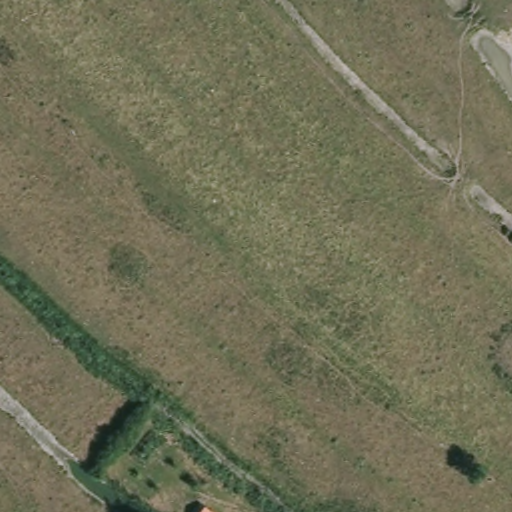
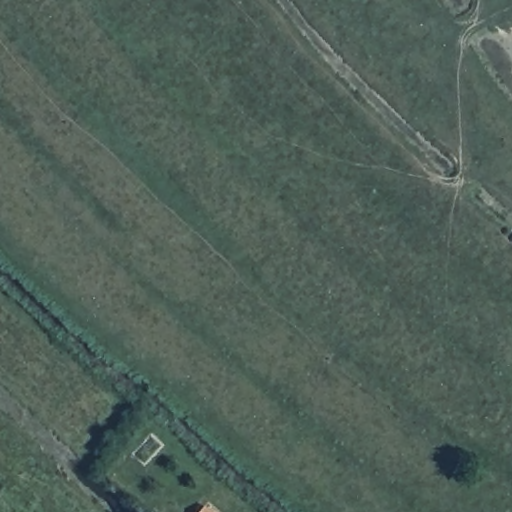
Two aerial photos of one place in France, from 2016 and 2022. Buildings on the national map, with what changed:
unchanged [(208,512),(210,510),(213,512),(208,512)]

